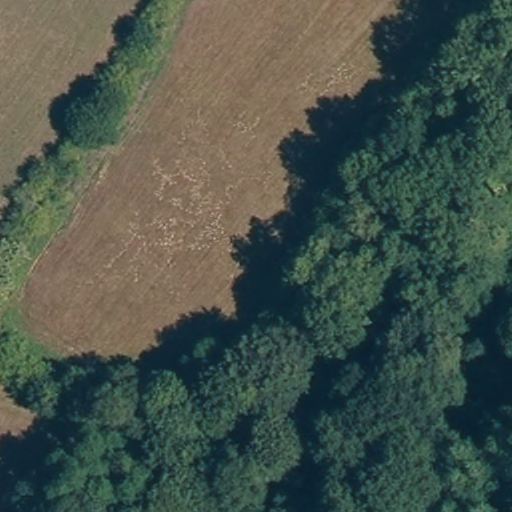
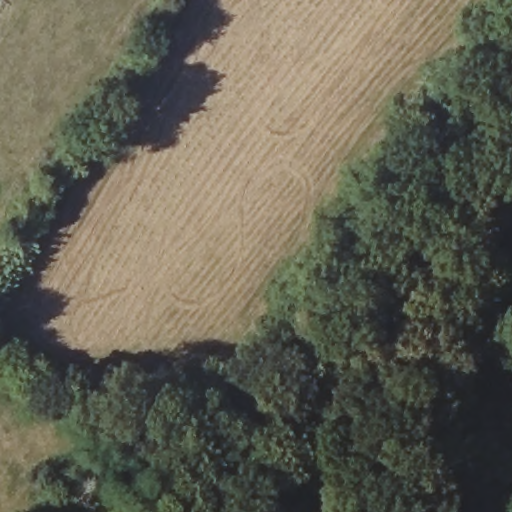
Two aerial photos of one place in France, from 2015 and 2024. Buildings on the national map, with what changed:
[]

